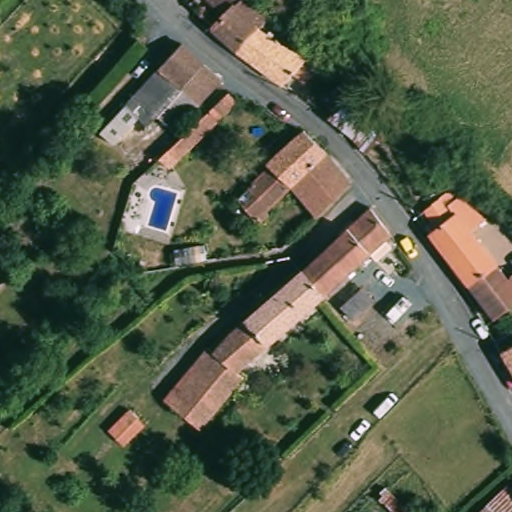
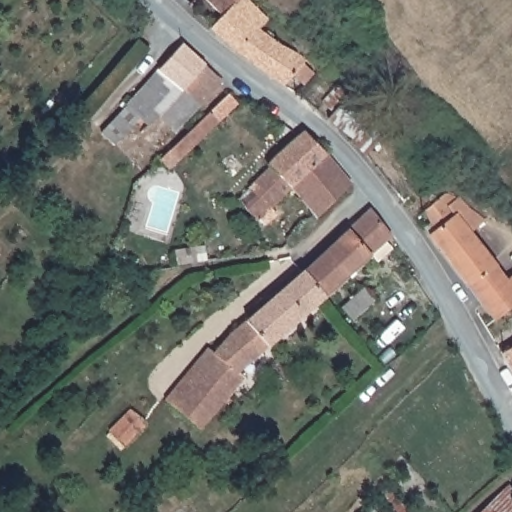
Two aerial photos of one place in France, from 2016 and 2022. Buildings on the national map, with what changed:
unchanged [(288,88),(240,54),(216,27),(225,16),(209,0),(245,0),(245,2),(268,22),(259,32),(306,61),(288,88)]
unchanged [(103,134),(129,106),(182,44),(224,80),(203,100),(195,112),(186,122),(176,132),(173,130),(154,149),(150,145),(142,151),(127,135),(117,147),(103,134)]
unchanged [(377,132),(357,149),(355,146),(349,137),(342,131),(319,112),(344,81),(356,95),(377,132)]
unchanged [(238,104),(220,121),(216,118),(177,156),(182,162),(172,173),(161,161),(172,151),(170,148),(229,94),(238,104)]
unchanged [(270,167),(268,164),(305,131),(317,142),(327,154),(255,222),(234,197),(270,167)]
unchanged [(332,159),(353,185),(316,220),(295,193),(332,159)]
unchanged [(507,279),(512,276),(512,306),(511,307),(496,319),(477,295),(447,256),(431,236),(437,230),(427,210),(445,191),(452,192),(458,195),(460,196),(470,206),(482,216),(490,221),(473,232),(507,279)]
unchanged [(324,296),(302,272),(372,208),(392,235),(324,296)]
unchanged [(282,333),(241,372),(247,377),(234,392),(209,370),(221,357),(216,353),(233,334),(302,272),(324,296),(282,333)]
unchanged [(512,347),(512,368),(502,353),(512,347)]
unchanged [(221,357),(209,370),(234,392),(201,431),(166,402),(210,349),(216,353),(221,357)]
unchanged [(512,512),(491,512),(512,492),(512,512)]

